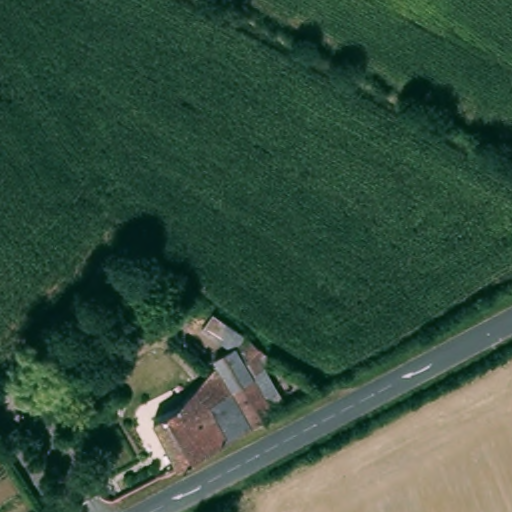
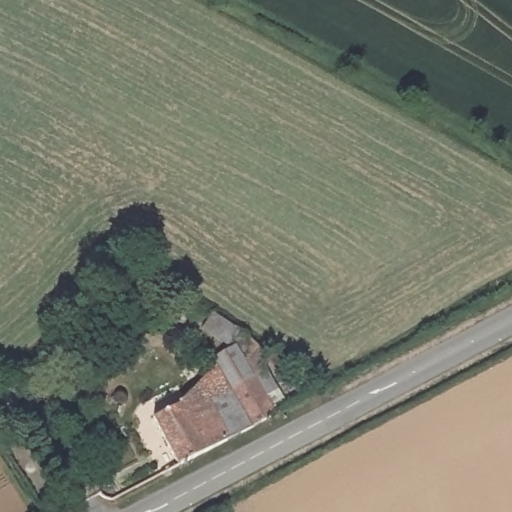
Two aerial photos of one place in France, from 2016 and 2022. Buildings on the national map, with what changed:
unchanged [(180,462),(154,415),(178,403),(220,363),(250,331),(273,352),(266,360),(280,382),(266,391),(279,409),(180,462)]

